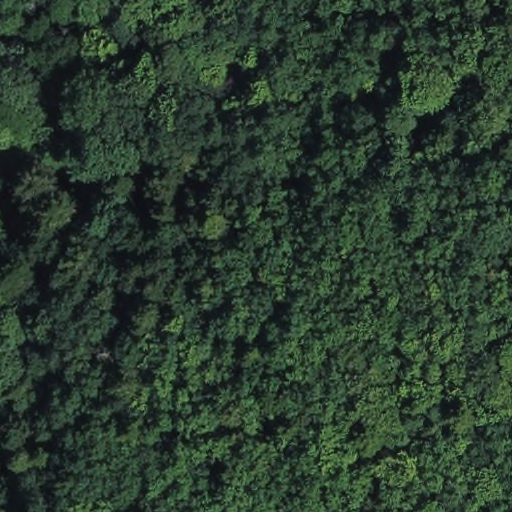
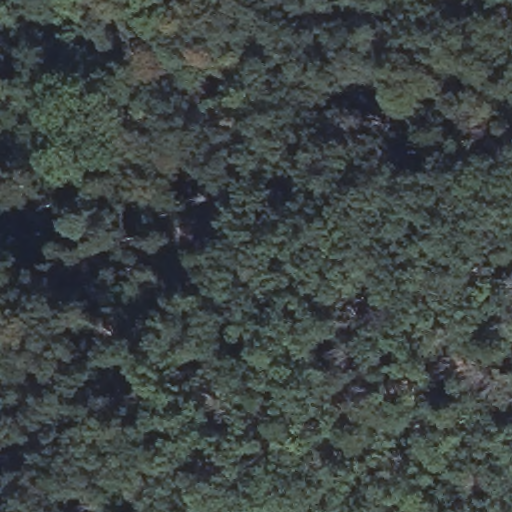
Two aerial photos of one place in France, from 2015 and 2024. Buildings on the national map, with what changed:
[]

